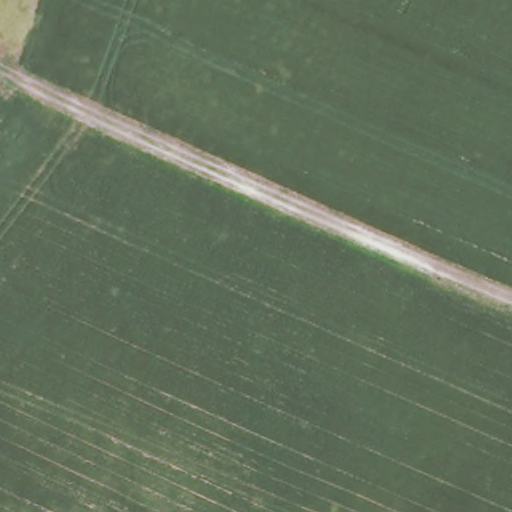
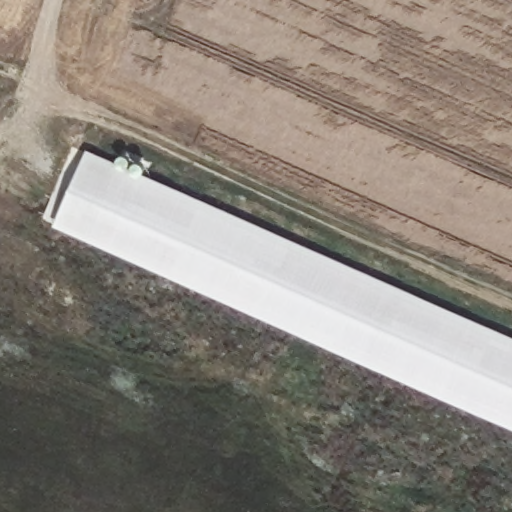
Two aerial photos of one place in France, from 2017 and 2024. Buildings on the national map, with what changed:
new [(86,149),(512,335),(512,427),(53,225),(86,149)]

